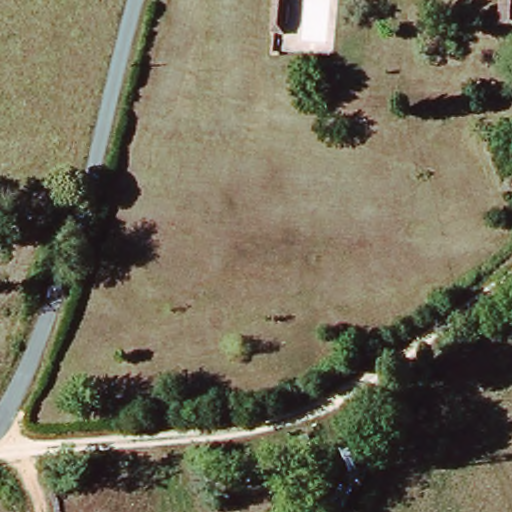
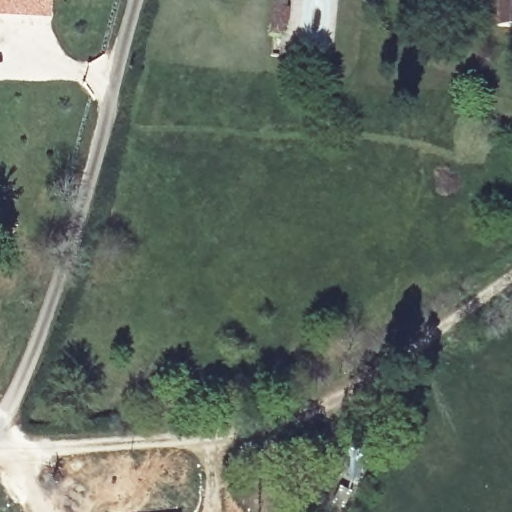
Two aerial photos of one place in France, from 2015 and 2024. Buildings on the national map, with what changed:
new [(51,16),(0,14),(0,0),(51,0),(51,16)]
unchanged [(501,0),(512,0),(512,25),(502,25),(501,0)]

